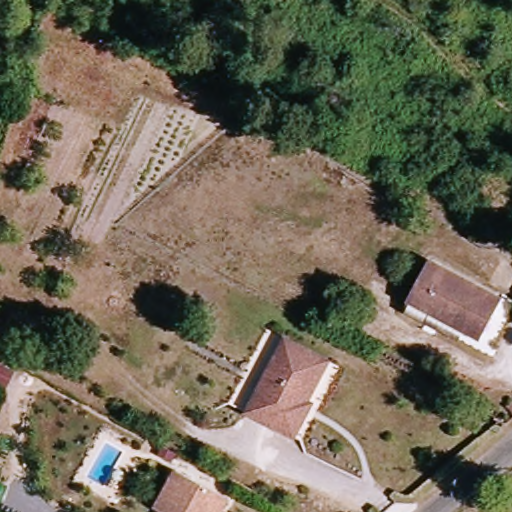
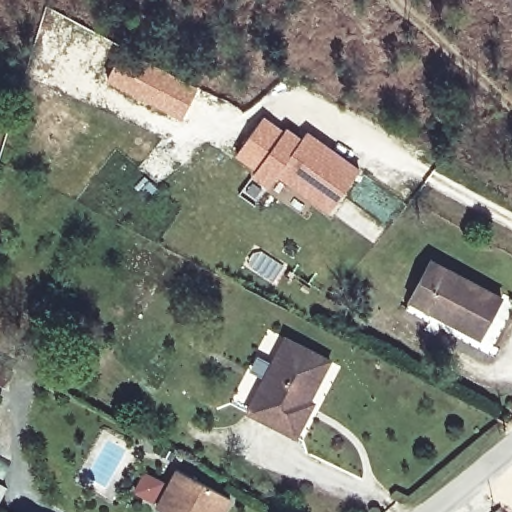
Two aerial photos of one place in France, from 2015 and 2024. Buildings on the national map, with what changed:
new [(122,47),(197,85),(182,114),(107,75),(122,47)]
new [(285,132),(287,128),(303,139),(308,134),(361,170),(330,213),(278,176),(269,188),(253,177),(257,170),(236,154),(262,116),(285,132)]
unchanged [(480,343),(410,304),(433,265),(502,300),(480,343)]
unchanged [(29,342),(32,335),(50,345),(47,352),(38,367),(21,357),(29,342)]
unchanged [(330,363),(301,417),(307,419),(294,440),(245,413),(287,338),(330,363)]
unchanged [(154,511),(175,473),(187,480),(227,502),(227,503),(222,512),(157,512),(154,511)]

